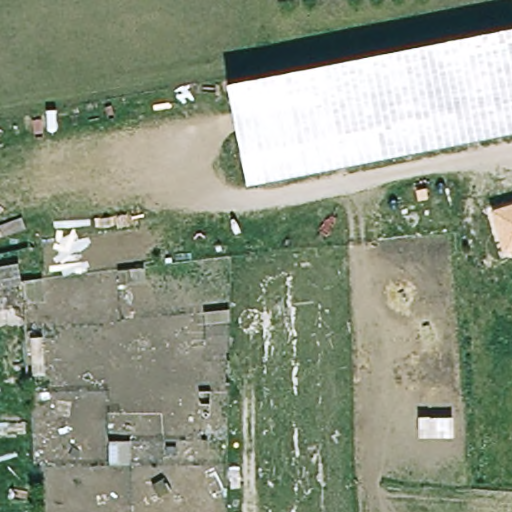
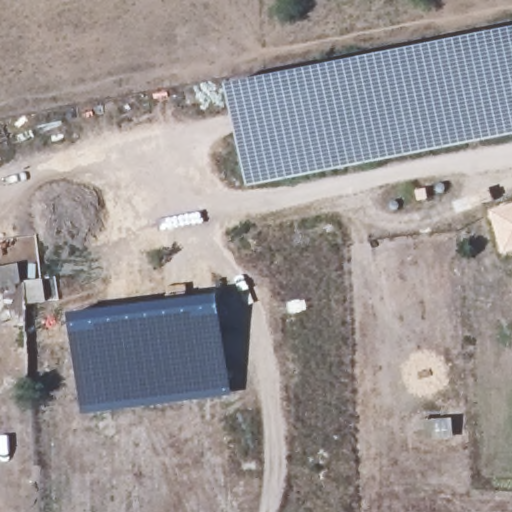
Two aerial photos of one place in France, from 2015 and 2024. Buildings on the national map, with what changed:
unchanged [(512,30),(512,133),(250,186),(230,86),(512,30)]
unchanged [(501,251),(491,210),(503,207),(512,205),(512,248),(501,251)]
new [(83,414),(71,314),(221,295),(234,396),(83,414)]

